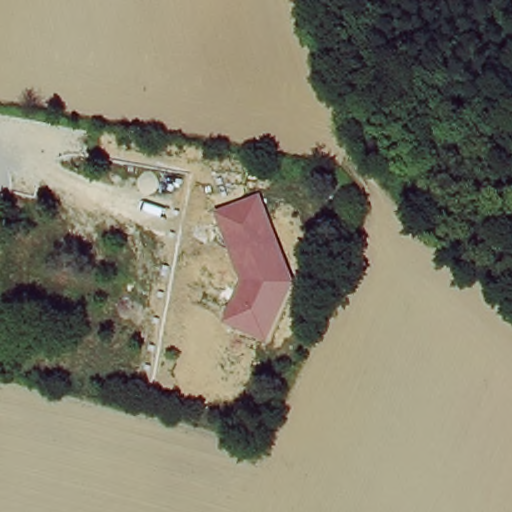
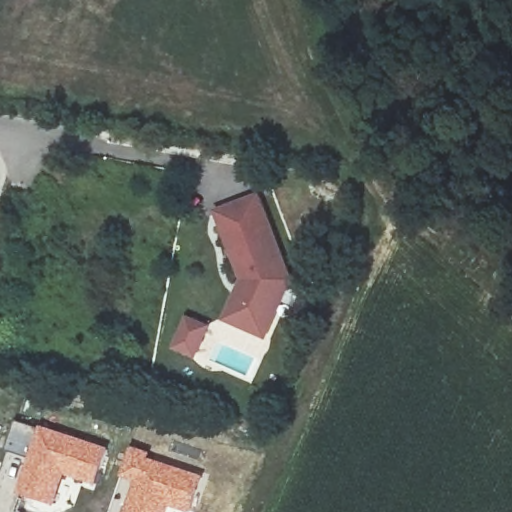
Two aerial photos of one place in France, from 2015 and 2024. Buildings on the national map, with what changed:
unchanged [(294,281),(268,341),(223,323),(241,278),(215,213),(261,194),(294,281)]
new [(194,319),(212,327),(209,335),(201,355),(182,347),(191,327),(194,319)]
new [(96,486),(64,477),(56,506),(18,496),(28,459),(5,450),(16,420),(39,426),(108,447),(96,486)]
new [(134,484),(120,479),(132,446),(151,453),(149,457),(202,475),(191,512),(185,512),(169,508),(167,512),(124,512),(134,484)]

